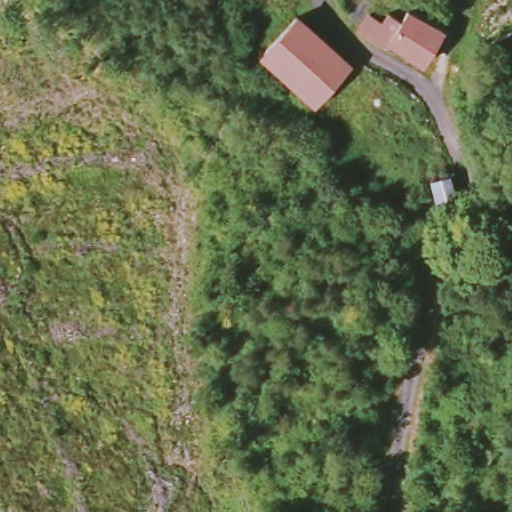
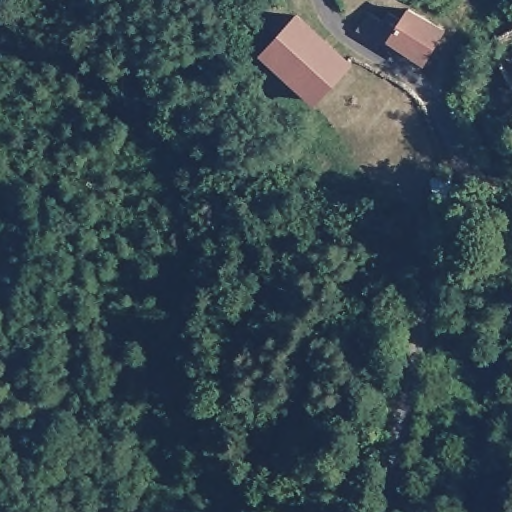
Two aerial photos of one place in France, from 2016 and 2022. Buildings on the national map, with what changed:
unchanged [(418,61),(386,42),(381,49),(354,31),(363,9),(380,19),(383,12),(394,19),(402,8),(439,29),(418,61)]
unchanged [(346,60),(314,99),(264,48),(296,9),(346,60)]
unchanged [(509,84),(494,57),(485,41),(512,25),(512,82),(509,84)]

